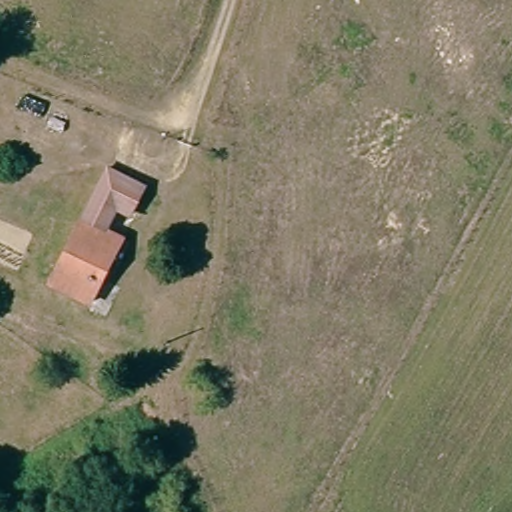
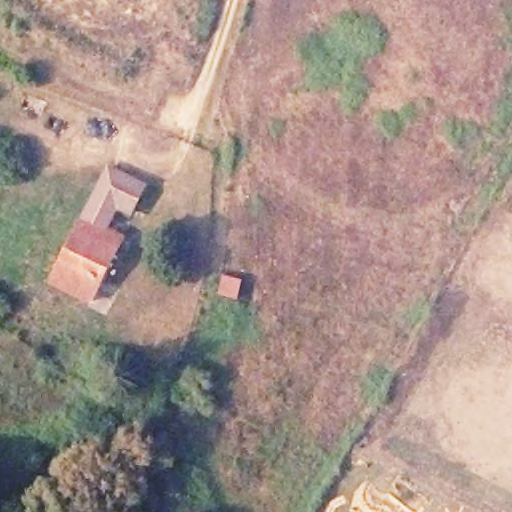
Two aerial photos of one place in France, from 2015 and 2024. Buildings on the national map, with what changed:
unchanged [(99,176),(140,193),(131,215),(116,210),(105,238),(119,243),(101,291),(59,275),(89,200),(99,176)]

